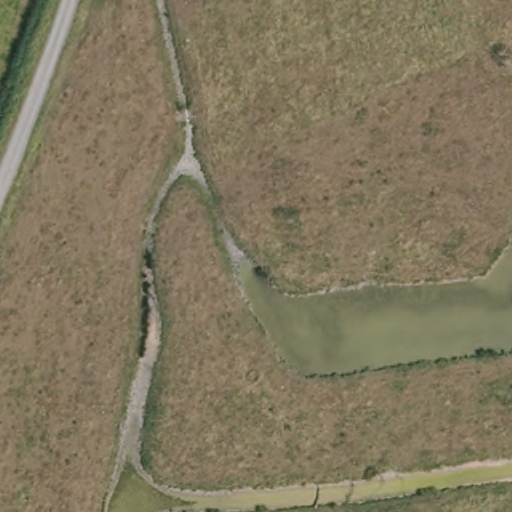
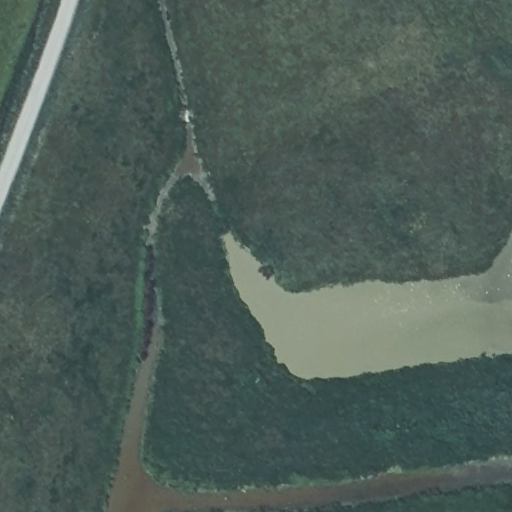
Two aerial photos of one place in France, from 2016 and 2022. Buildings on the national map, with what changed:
[]

